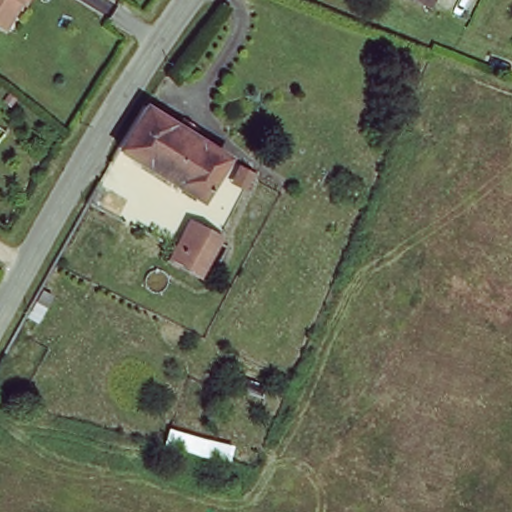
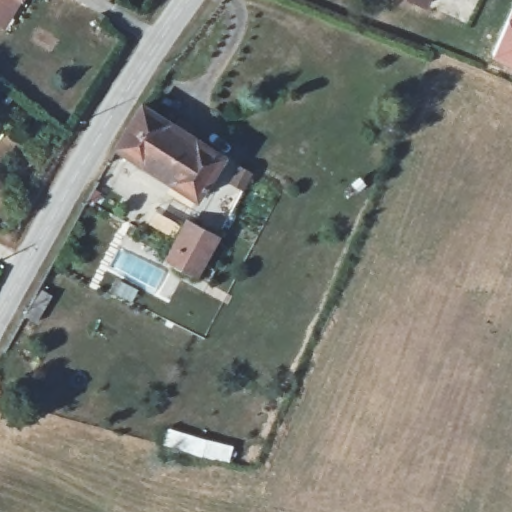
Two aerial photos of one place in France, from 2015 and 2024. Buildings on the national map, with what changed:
unchanged [(0,20),(0,0),(13,0),(0,20)]
unchanged [(431,4),(422,0),(432,0),(431,4)]
new [(491,58),(509,17),(512,9),(512,66),(491,58)]
unchanged [(196,193),(116,143),(143,100),(217,148),(223,153),(196,193)]
unchanged [(189,222),(219,237),(200,273),(172,258),(176,250),(189,222)]

